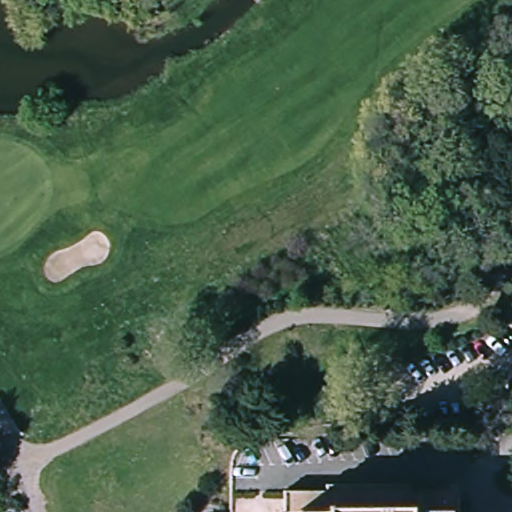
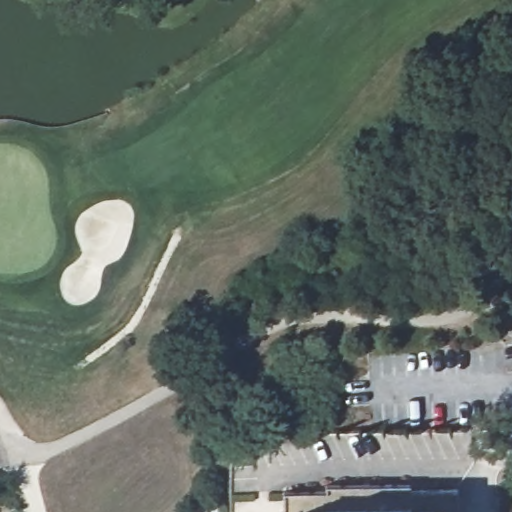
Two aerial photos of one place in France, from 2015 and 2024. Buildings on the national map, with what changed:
unchanged [(277,491),(319,490),(319,485),(404,484),(404,490),(452,489),(453,512),(275,512),(277,510),(277,491)]

